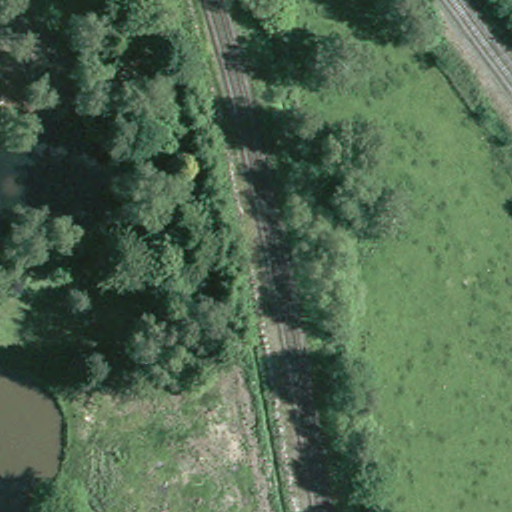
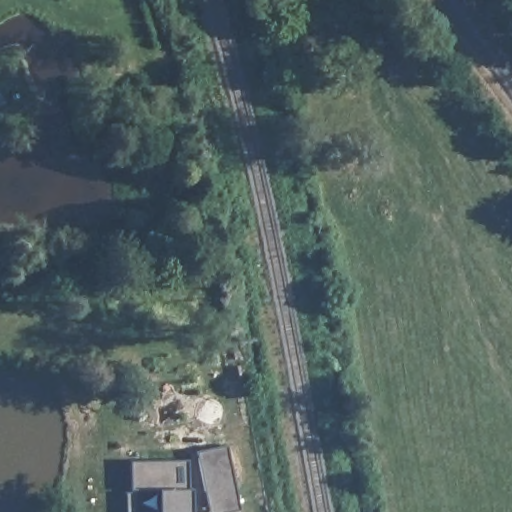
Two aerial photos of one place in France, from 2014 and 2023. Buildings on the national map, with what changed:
new [(227,444),(241,508),(221,512),(210,512),(197,450),(227,444)]
new [(135,512),(158,511),(158,486),(130,487),(128,460),(188,458),(190,487),(191,512),(127,512),(126,491),(135,490),(135,512)]

